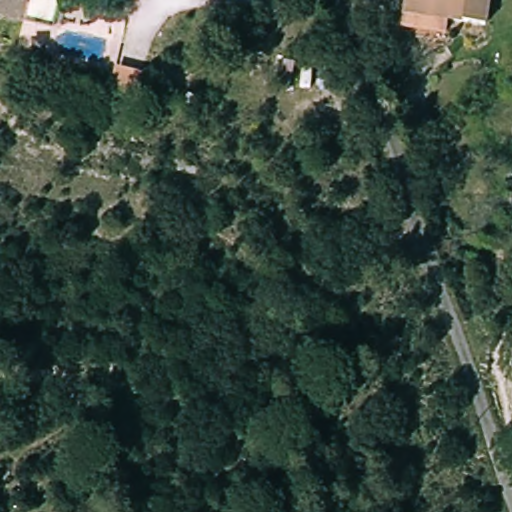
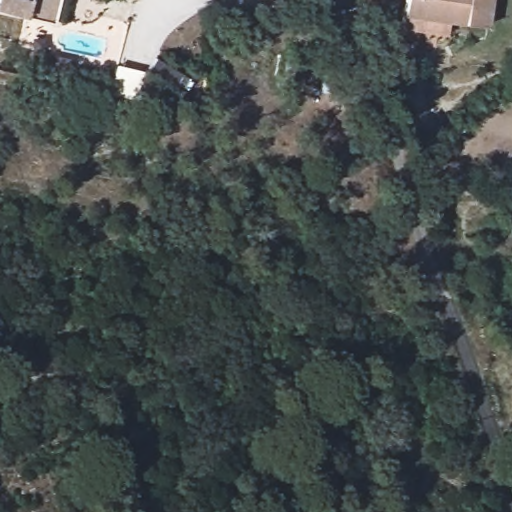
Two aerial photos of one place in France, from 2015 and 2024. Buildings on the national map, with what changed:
unchanged [(0,11),(0,7),(1,0),(57,0),(53,22),(0,11)]
unchanged [(406,20),(409,0),(486,0),(483,31),(406,20)]

